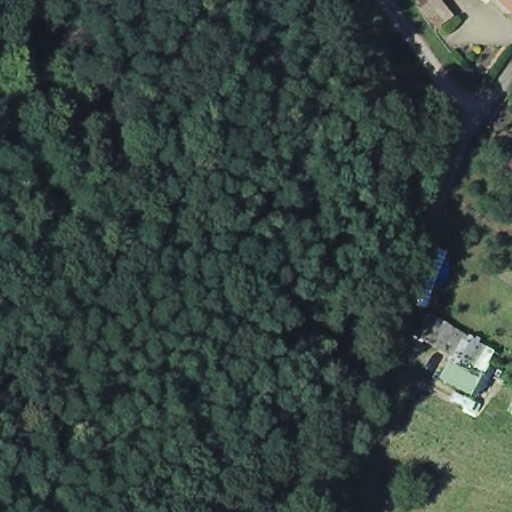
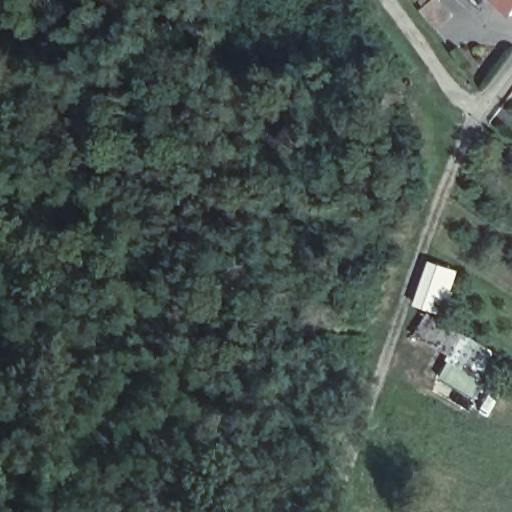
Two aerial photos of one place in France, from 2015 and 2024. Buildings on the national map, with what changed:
unchanged [(512,0),(512,9),(503,0),(512,0)]
unchanged [(427,313),(495,352),(489,367),(493,370),(482,389),(471,394),(439,377),(450,355),(417,335),(427,313)]

